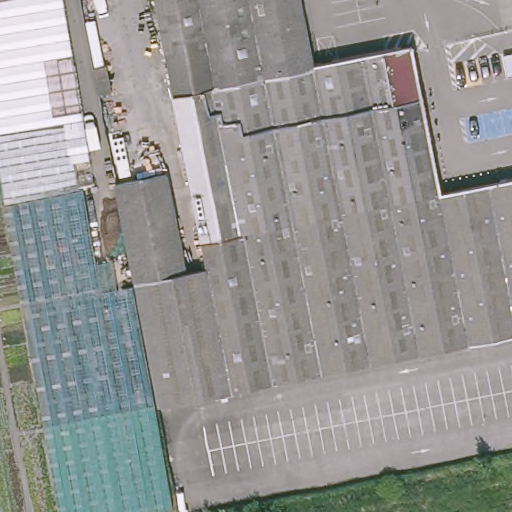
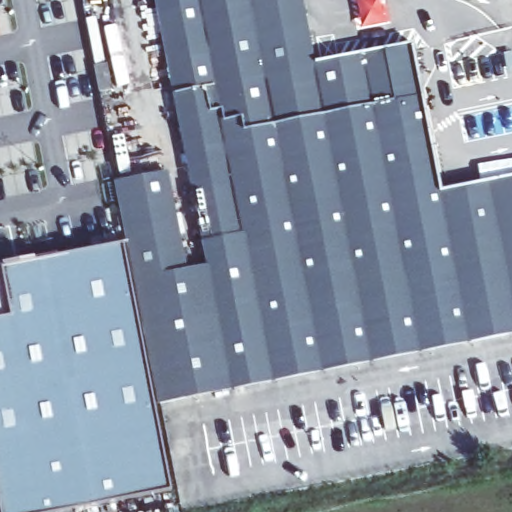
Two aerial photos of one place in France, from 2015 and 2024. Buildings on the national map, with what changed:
unchanged [(168,66),(155,0),(302,0),(315,64),(213,84),(173,92),(168,66)]
unchanged [(134,276),(185,267),(205,263),(173,92),(213,84),(315,64),(409,45),(438,187),(512,174),(512,329),(158,400),(134,276)]
demolished [(89,70),(100,67),(107,94),(94,96),(89,70)]
demolished [(90,156),(75,160),(70,160),(93,260),(110,258),(115,283),(24,301),(0,174),(0,132),(63,121),(84,118),(90,156)]
unchanged [(167,170),(185,267),(134,276),(127,241),(115,180),(167,170)]
new [(168,493),(67,512),(0,512),(0,268),(122,245),(168,493)]
demolished [(152,400),(172,507),(147,512),(63,512),(46,420),(152,400)]

